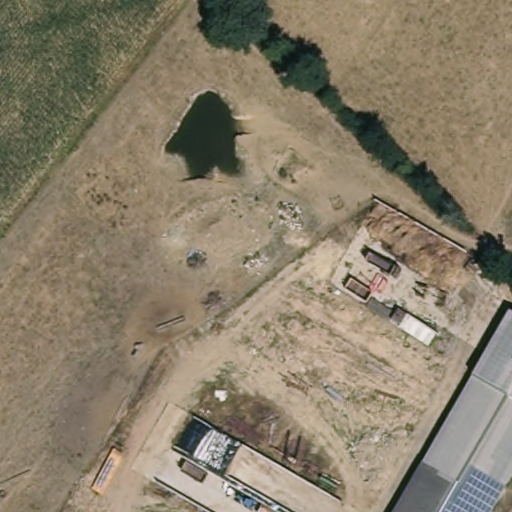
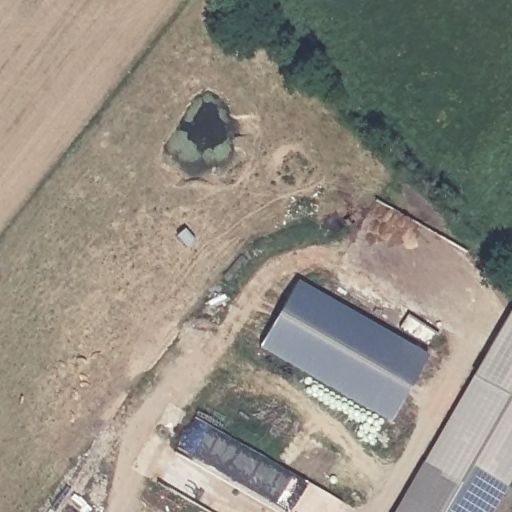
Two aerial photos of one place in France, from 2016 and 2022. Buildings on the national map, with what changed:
new [(298,281),(427,356),(391,422),(260,348),(298,281)]
unchanged [(426,466),(473,375),(512,311),(512,481),(499,505),(426,466)]
unchanged [(499,505),(495,512),(400,512),(426,466),(499,505)]

